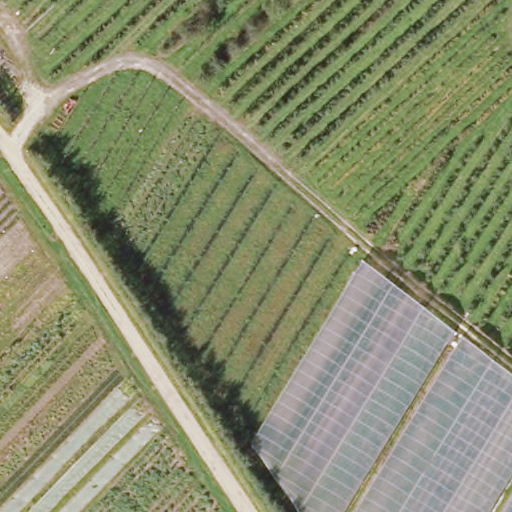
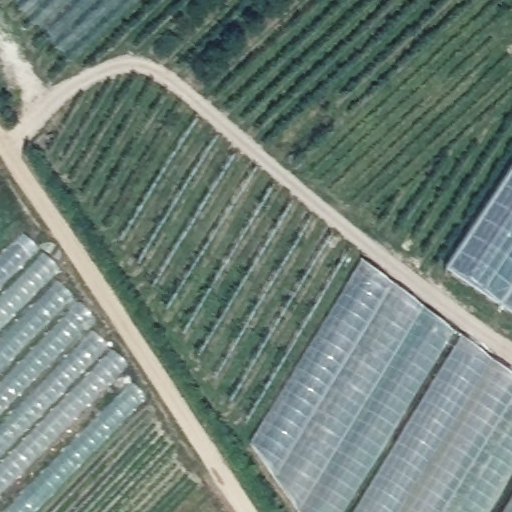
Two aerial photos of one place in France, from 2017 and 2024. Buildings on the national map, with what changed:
new [(444,275),(512,171),(512,320),(444,275)]
new [(52,279),(94,319),(87,328),(129,366),(122,374),(147,400),(38,512),(0,512),(0,257),(22,235),(60,270),(52,279)]
unchanged [(512,377),(512,512),(298,512),(252,447),(362,262),(512,377)]

